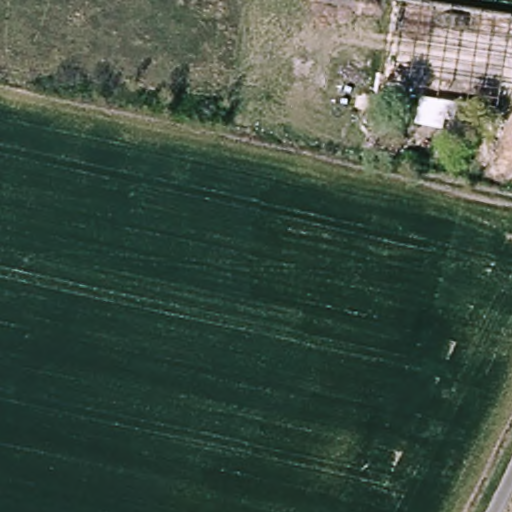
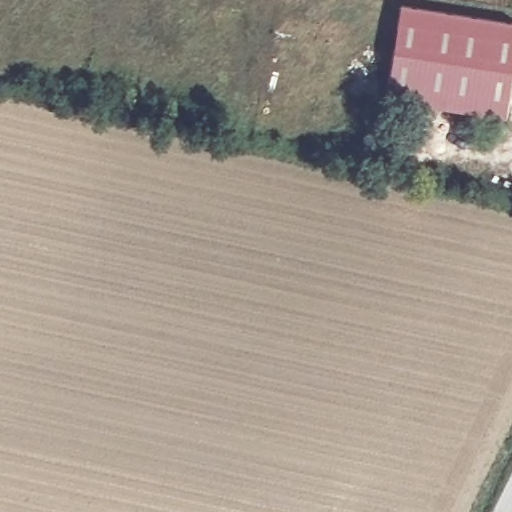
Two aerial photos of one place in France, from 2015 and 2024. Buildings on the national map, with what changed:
new [(512,21),(512,79),(505,119),(385,99),(400,4),(512,21)]

